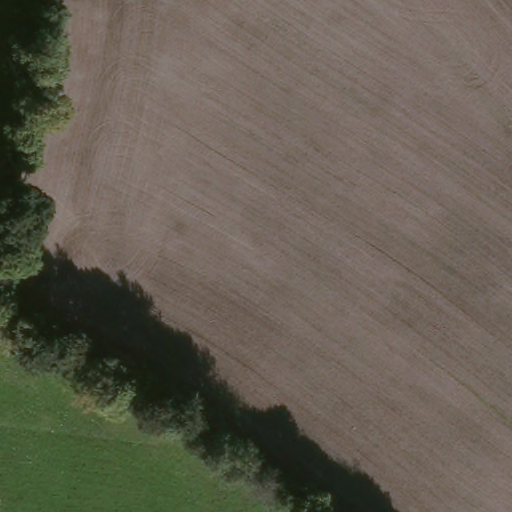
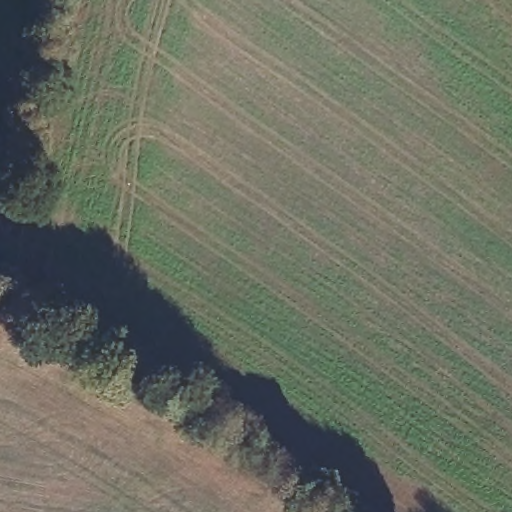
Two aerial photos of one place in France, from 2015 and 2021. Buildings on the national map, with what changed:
unchanged [(0,238),(0,220),(6,222),(0,238)]

